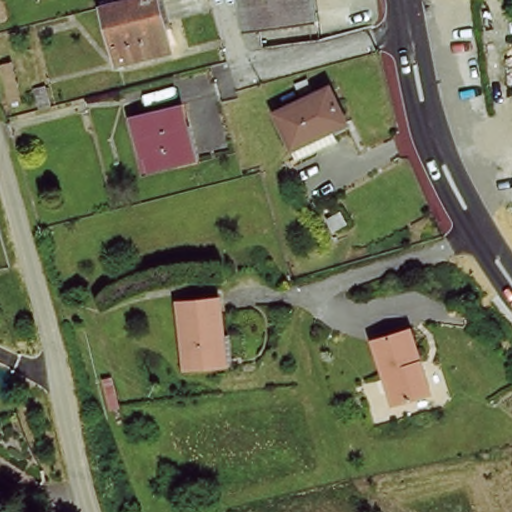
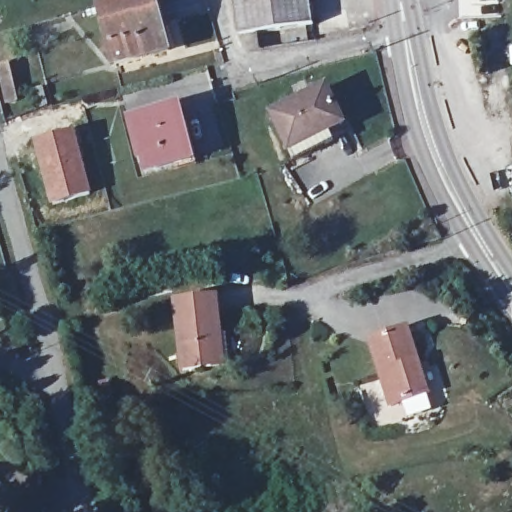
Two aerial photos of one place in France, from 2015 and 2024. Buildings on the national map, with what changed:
unchanged [(153,0),(161,28),(167,26),(174,49),(118,63),(103,7),(133,0),(153,0)]
unchanged [(253,36),(243,37),(238,0),(311,0),(316,28),(253,36)]
new [(6,105),(0,78),(0,65),(10,63),(20,102),(6,105)]
unchanged [(274,109),(329,83),(346,120),(331,128),(335,137),(296,155),(291,146),(274,109)]
unchanged [(128,115),(176,103),(191,160),(145,173),(128,115)]
new [(75,131),(91,194),(47,206),(30,142),(75,131)]
unchanged [(223,332),(218,333),(221,363),(185,366),(178,298),(220,294),(223,332)]
unchanged [(373,338),(412,327),(432,393),(393,404),(373,338)]

